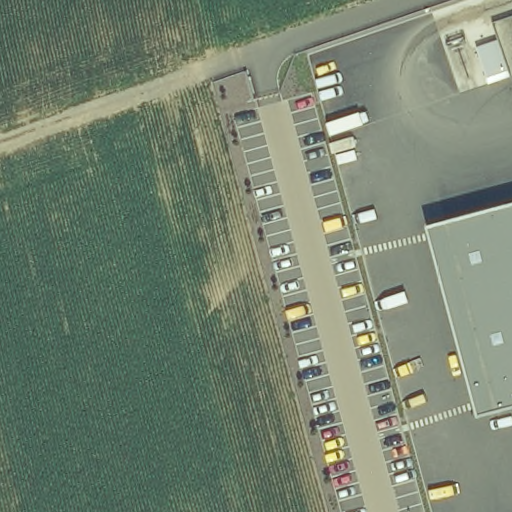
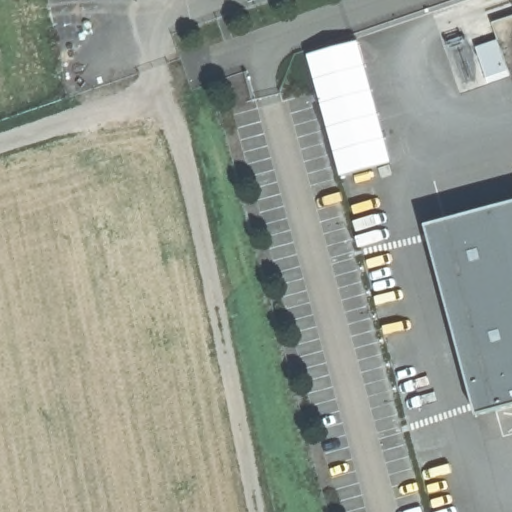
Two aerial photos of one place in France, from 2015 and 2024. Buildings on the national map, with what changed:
new [(358,40),(392,162),(340,176),(306,54),(358,40)]
unchanged [(512,202),(512,407),(478,416),(426,225),(512,202)]

